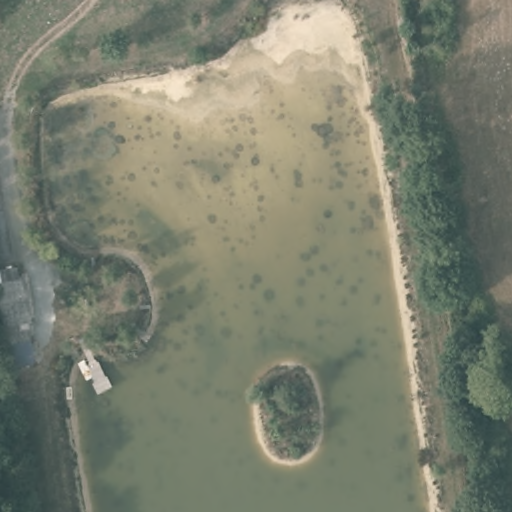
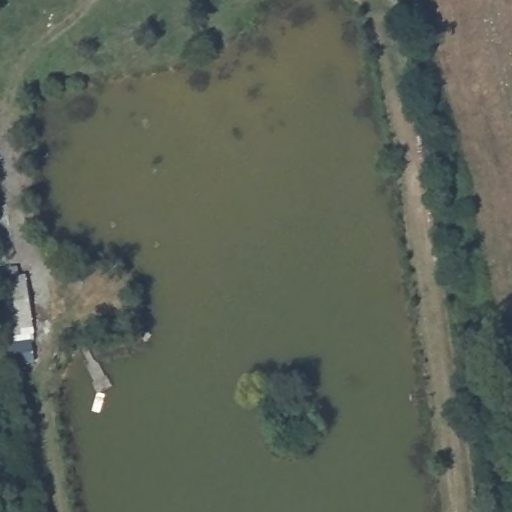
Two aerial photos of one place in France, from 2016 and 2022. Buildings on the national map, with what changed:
unchanged [(0,330),(0,327),(0,276),(27,272),(34,324),(0,330)]

